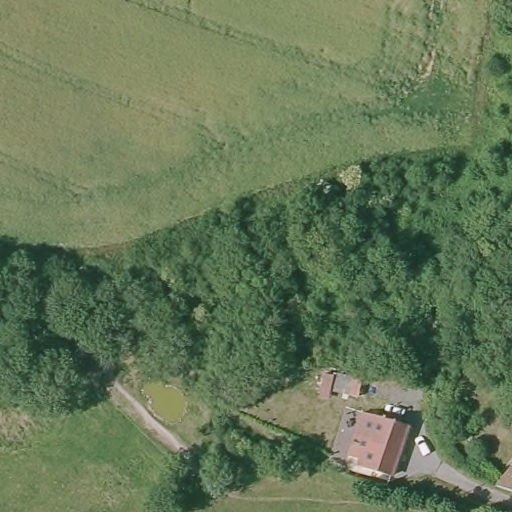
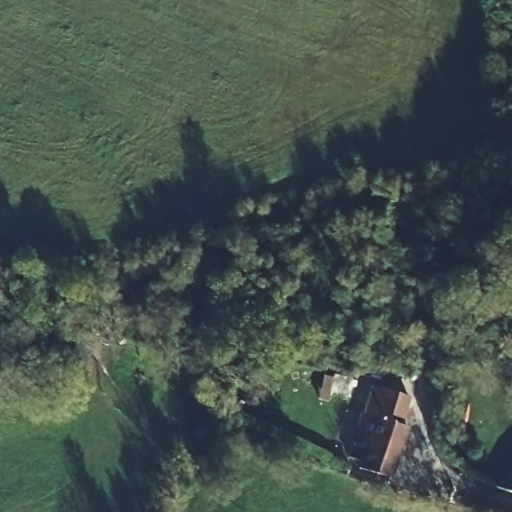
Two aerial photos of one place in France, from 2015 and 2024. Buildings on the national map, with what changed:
unchanged [(372,388),(366,405),(337,395),(342,378),(372,388)]
unchanged [(394,480),(362,469),(365,462),(356,459),(370,421),(390,428),(395,415),(409,419),(405,433),(409,435),(394,480)]
unchanged [(495,507),(485,504),(512,470),(512,512),(510,512),(495,507)]

